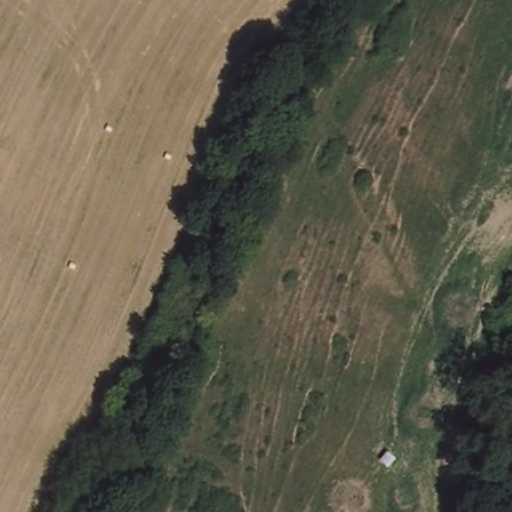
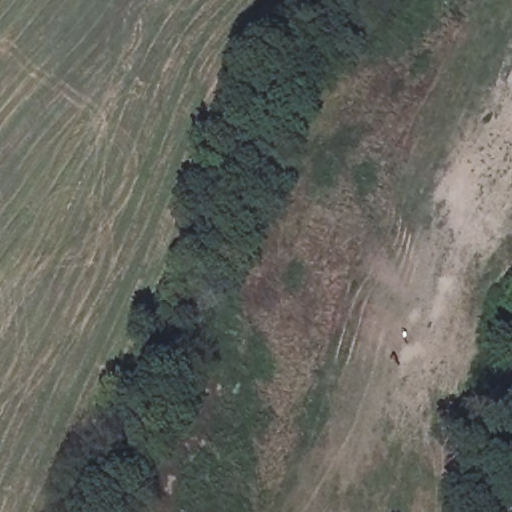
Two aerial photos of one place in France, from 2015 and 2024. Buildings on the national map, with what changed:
[]

